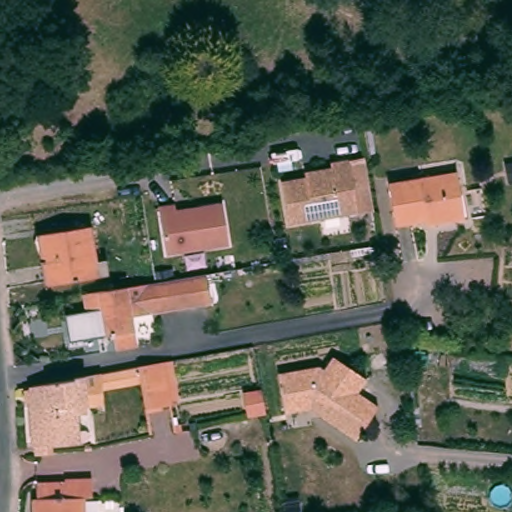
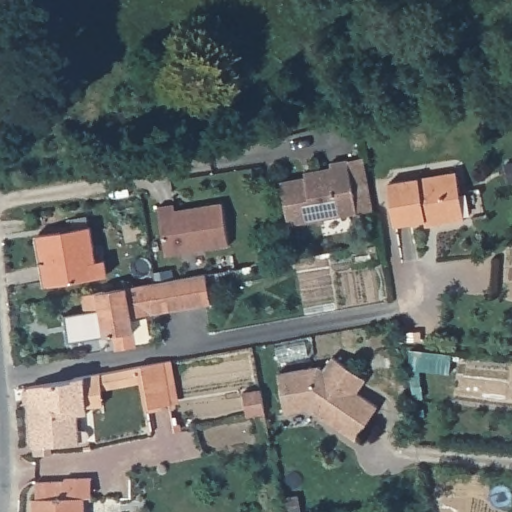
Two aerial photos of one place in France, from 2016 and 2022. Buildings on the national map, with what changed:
unchanged [(357,214),(288,224),(281,180),(313,176),(312,171),(332,168),(332,163),(350,160),(357,214)]
unchanged [(461,220),(423,225),(423,221),(392,225),(386,181),(455,172),(461,220)]
unchanged [(229,243),(165,252),(158,204),(174,201),(175,207),(222,201),(229,243)]
unchanged [(94,225),(97,245),(102,244),(104,257),(110,256),(112,273),(46,281),(38,233),(94,225)]
unchanged [(155,285),(206,276),(210,305),(132,317),(137,346),(116,350),(114,335),(97,337),(93,310),(86,312),(82,295),(132,288),(155,285)]
unchanged [(167,361),(176,403),(150,408),(141,365),(167,361)]
unchanged [(278,420),(277,413),(271,381),(312,375),(318,377),(325,362),(362,378),(355,394),(377,405),(363,438),(320,418),(310,414),(278,420)]
unchanged [(88,429),(92,430),(95,433),(95,436),(93,440),(90,441),(37,446),(34,399),(32,385),(89,375),(91,396),(92,406),(82,407),(84,429),(88,429)]
unchanged [(260,390),(264,412),(249,416),(244,394),(260,390)]
unchanged [(83,512),(33,512),(33,487),(33,481),(62,482),(62,480),(88,481),(88,485),(88,500),(84,500),(83,512)]

